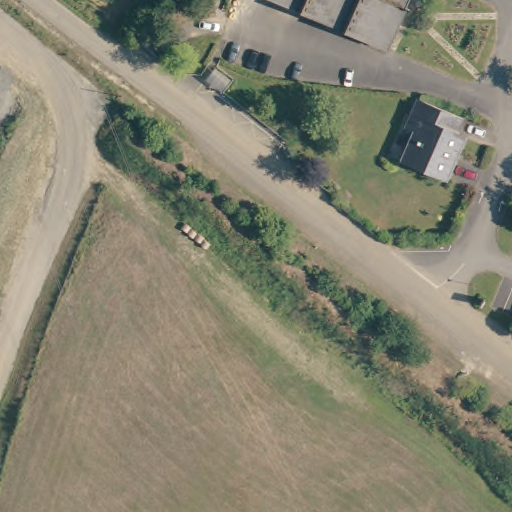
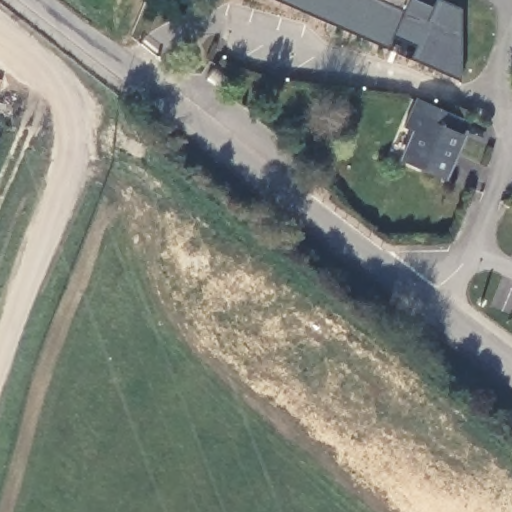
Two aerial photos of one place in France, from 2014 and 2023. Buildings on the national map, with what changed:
unchanged [(388,49),(278,0),(411,0),(388,49)]
new [(410,57),(415,49),(393,39),(411,0),(420,0),(431,5),(433,0),(444,0),(460,8),(460,80),(410,57)]
unchanged [(420,143),(409,138),(422,110),(467,130),(460,145),(468,148),(451,186),(408,169),(420,143)]

